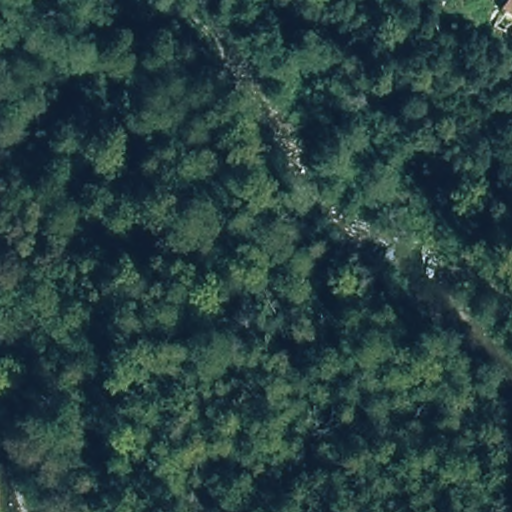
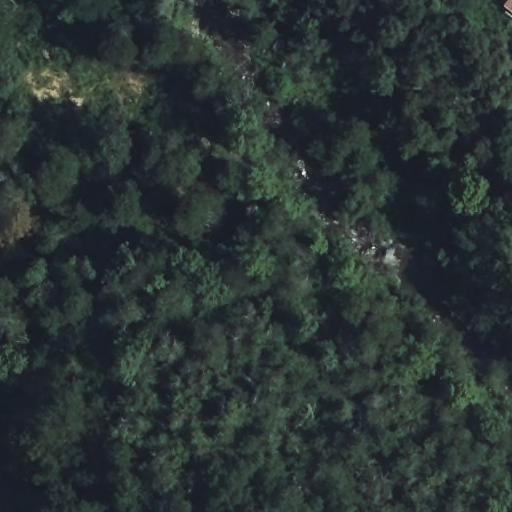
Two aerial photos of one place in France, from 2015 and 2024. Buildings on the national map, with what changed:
unchanged [(512,1),(511,0),(512,0),(512,1)]

